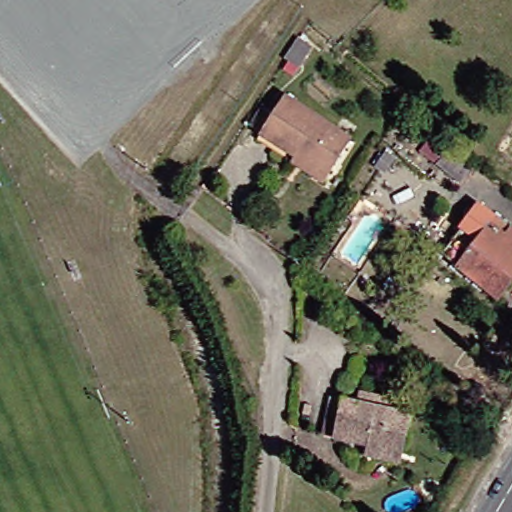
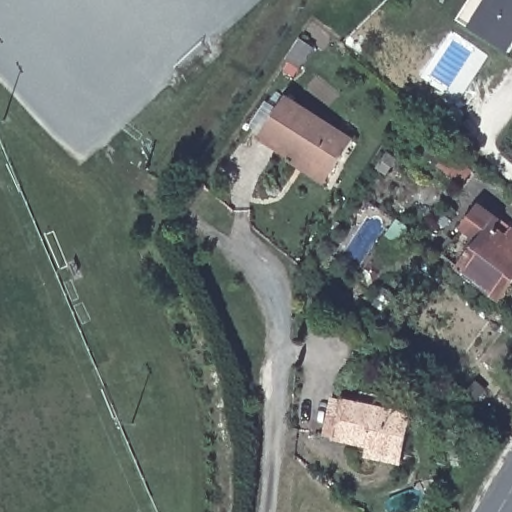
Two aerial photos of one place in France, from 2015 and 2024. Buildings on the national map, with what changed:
new [(512,51),(511,53),(471,27),(460,19),(472,0),(512,0),(512,51)]
unchanged [(307,65),(295,55),(308,35),(321,45),(307,65)]
unchanged [(288,160),(255,136),(280,99),(345,142),(323,175),(317,185),(285,164),(288,160)]
unchanged [(466,180),(446,161),(450,157),(437,145),(445,137),(477,169),(466,180)]
unchanged [(490,302),(435,256),(475,207),(512,238),(512,275),(510,277),(490,302)]
unchanged [(364,455),(366,446),(331,438),(320,436),(329,398),(340,400),(410,416),(402,451),(400,464),(364,455)]

